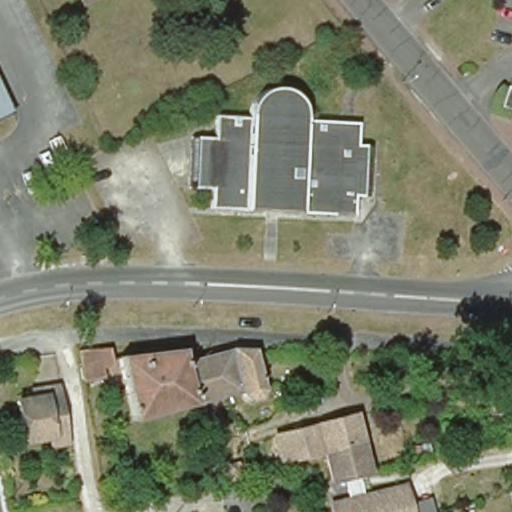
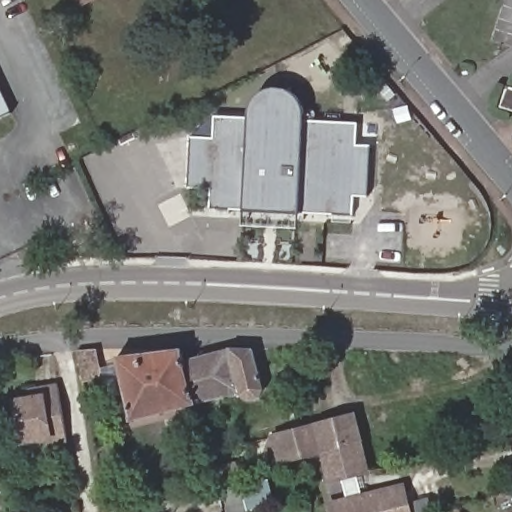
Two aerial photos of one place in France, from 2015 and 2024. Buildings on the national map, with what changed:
unchanged [(87,2),(86,0),(92,0),(87,2)]
unchanged [(501,100),(509,80),(512,82),(512,104),(501,100)]
unchanged [(205,207),(207,187),(189,186),(192,135),(209,137),(210,114),(243,116),(243,114),(243,113),(244,111),(244,110),(244,109),(245,107),(245,106),(246,104),(247,103),(248,102),(249,101),(249,99),(250,98),(252,97),(253,96),(254,95),(255,94),(256,93),(258,92),(259,92),(260,91),(261,91),(262,90),(263,90),(264,90),(265,89),(267,89),(268,89),(269,89),(270,89),(272,89),(273,89),(274,89),(275,89),(277,89),(278,89),(279,89),(280,89),(281,90),(282,90),(284,90),(286,91),(289,93),(289,94),(290,95),(292,96),(292,97),(293,98),(294,100),(294,101),(295,102),(296,103),(297,105),(297,106),(298,108),(298,109),(298,110),(299,112),(299,113),(299,115),(299,116),(299,118),(299,119),(353,122),(352,143),(362,144),(358,196),(349,195),(348,215),(205,207)]
unchanged [(0,117),(0,91),(10,112),(0,117)]
unchanged [(184,363),(185,376),(187,380),(197,406),(131,423),(124,394),(106,398),(101,374),(119,370),(118,365),(86,372),(82,352),(108,350),(109,360),(116,359),(182,352),(184,363)]
unchanged [(253,351),(263,390),(259,399),(249,402),(239,394),(197,406),(187,380),(185,376),(184,363),(230,350),(253,351)]
unchanged [(67,444),(49,447),(49,439),(21,443),(15,401),(32,398),(30,391),(41,389),(58,386),(67,444)]
unchanged [(348,495),(342,474),(329,477),(323,453),(322,448),(280,459),(274,433),(354,412),(360,435),(362,443),(368,468),(354,471),(359,492),(402,482),(409,512),(331,512),(328,500),(348,495)]
unchanged [(215,486),(214,480),(212,471),(237,465),(238,471),(244,470),(246,478),(215,486)]

